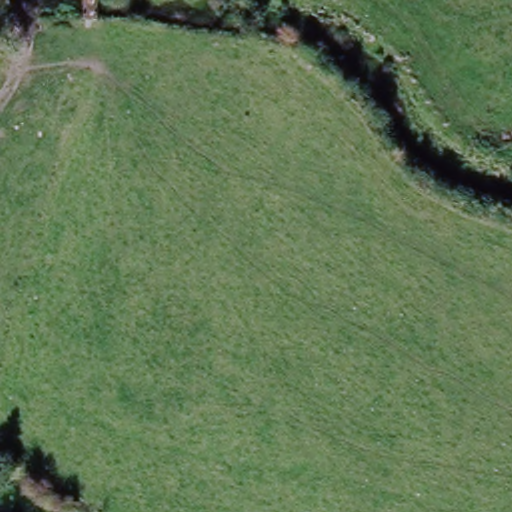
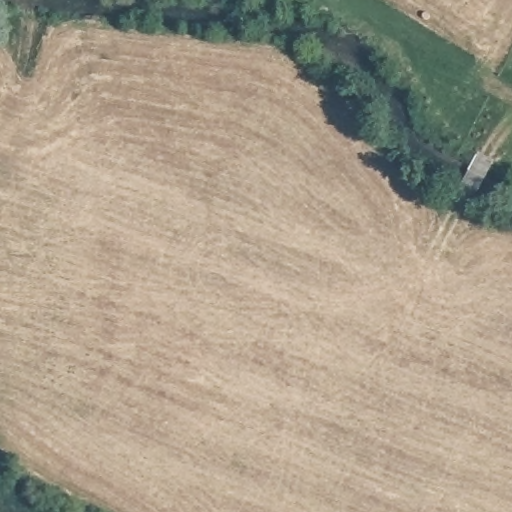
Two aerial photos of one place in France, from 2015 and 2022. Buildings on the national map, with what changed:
[]

